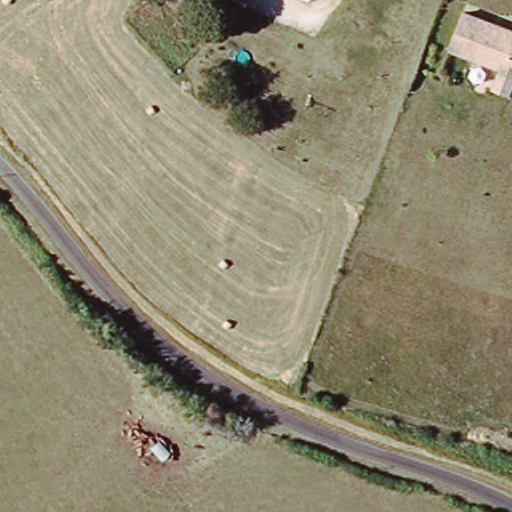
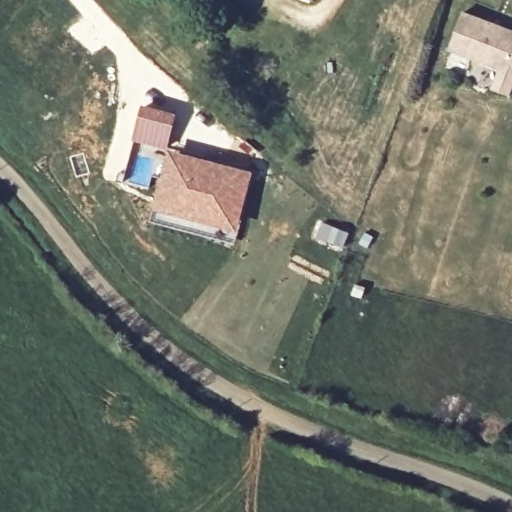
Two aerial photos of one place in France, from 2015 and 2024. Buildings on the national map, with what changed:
unchanged [(467,9),(512,26),(512,68),(453,45),(467,9)]
new [(142,103),(179,112),(167,150),(132,141),(142,103)]
new [(168,147),(255,170),(237,236),(225,233),(224,239),(218,237),(218,239),(150,220),(152,209),(168,147)]

